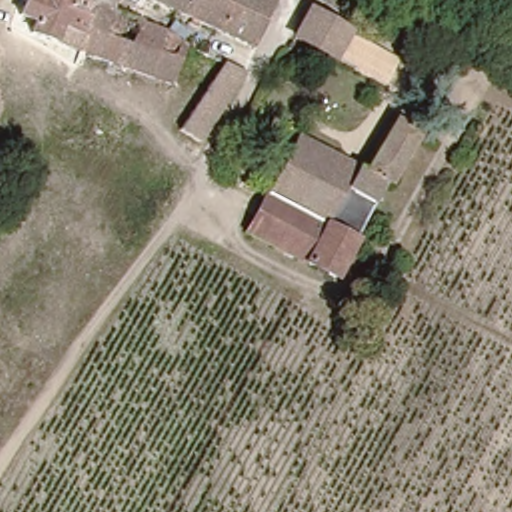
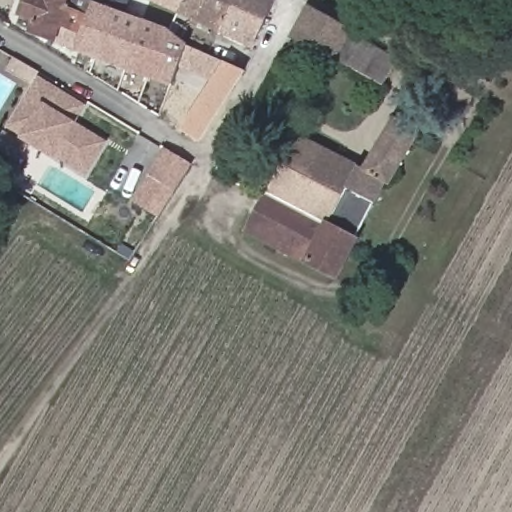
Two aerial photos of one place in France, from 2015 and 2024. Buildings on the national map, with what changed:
unchanged [(141,20),(140,22),(145,23),(164,30),(168,33),(185,45),(174,73),(170,84),(31,32),(34,22),(19,16),(25,0),(114,0),(111,9),(141,20)]
unchanged [(152,0),(183,0),(178,12),(152,0)]
unchanged [(218,0),(231,7),(264,22),(250,52),(244,50),(246,44),(218,32),(178,12),(183,0),(218,0)]
unchanged [(264,22),(231,7),(218,0),(273,0),(275,1),(264,22)]
unchanged [(392,86),(383,80),(295,31),(295,30),(310,6),(376,43),(377,46),(381,49),(377,52),(393,61),(403,67),(392,86)]
unchanged [(181,129),(206,90),(224,62),(244,71),(199,141),(181,129)]
new [(71,122),(103,141),(83,172),(6,125),(31,83),(35,77),(58,91),(81,105),(71,122)]
unchanged [(291,134),(358,169),(389,120),(412,132),(382,182),(379,182),(328,276),(241,230),(291,134)]
unchanged [(12,152),(10,151),(20,135),(29,140),(14,162),(8,159),(12,152)]
new [(173,192),(146,175),(164,145),(192,164),(173,192)]

